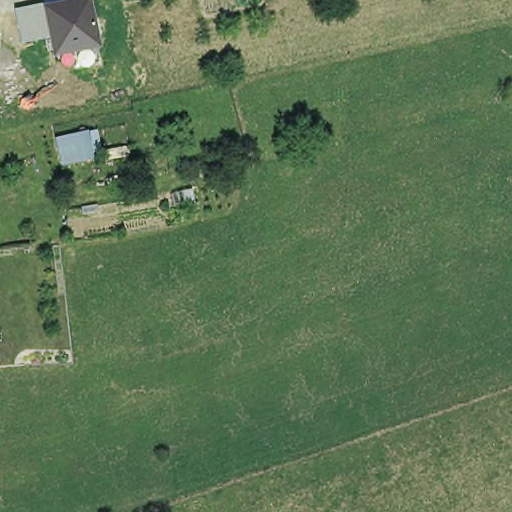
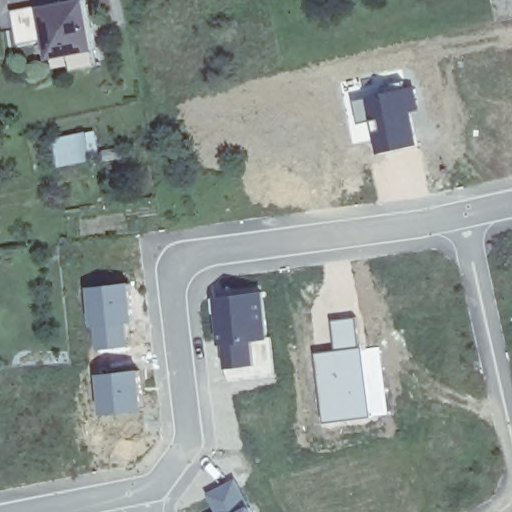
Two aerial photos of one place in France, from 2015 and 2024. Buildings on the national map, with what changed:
unchanged [(70,0),(89,0),(98,49),(50,58),(46,40),(20,43),(13,10),(40,5),(70,0)]
new [(413,84),(418,106),(414,109),(422,143),(378,151),(371,121),(358,124),(352,99),(413,84)]
new [(129,281),(133,322),(126,323),(125,346),(92,348),(86,285),(129,281)]
new [(224,370),(220,344),(213,295),(265,289),(271,339),(258,341),(260,367),(224,370)]
new [(333,319),(356,315),(362,346),(363,347),(372,416),(326,422),(316,351),(336,349),(333,319)]
new [(380,345),(388,413),(372,416),(363,347),(380,345)]
new [(139,368),(143,408),(101,413),(96,372),(139,368)]
new [(236,476),(251,503),(233,512),(217,512),(206,492),(236,476)]
new [(251,503),(255,512),(233,512),(251,503)]

